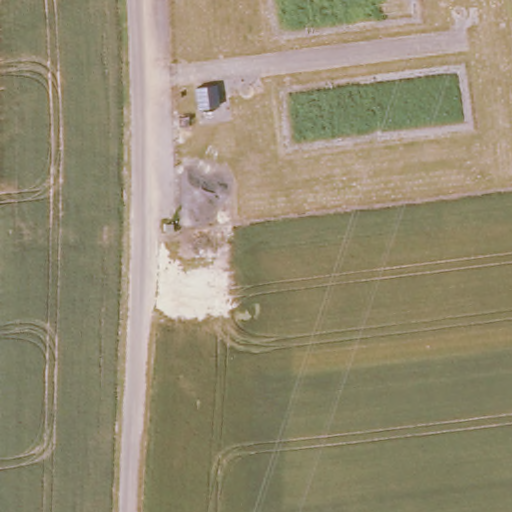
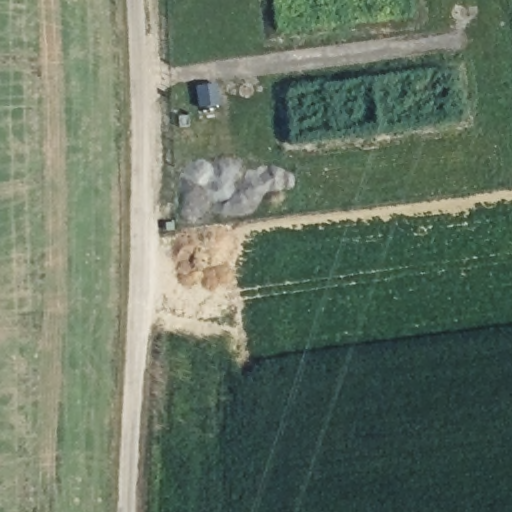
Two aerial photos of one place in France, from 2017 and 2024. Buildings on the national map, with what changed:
unchanged [(219,85),(222,106),(201,109),(199,88),(219,85)]

